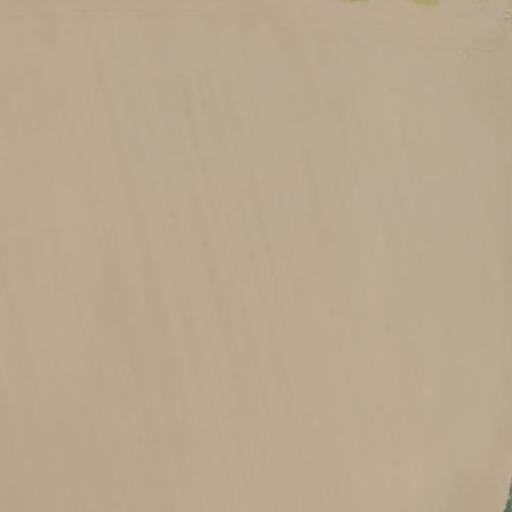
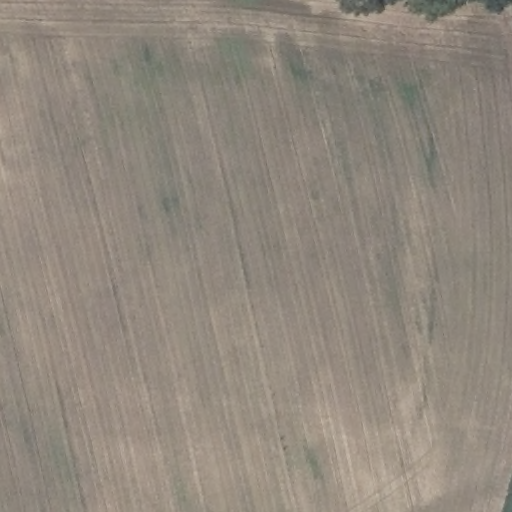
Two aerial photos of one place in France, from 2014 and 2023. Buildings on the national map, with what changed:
[]

